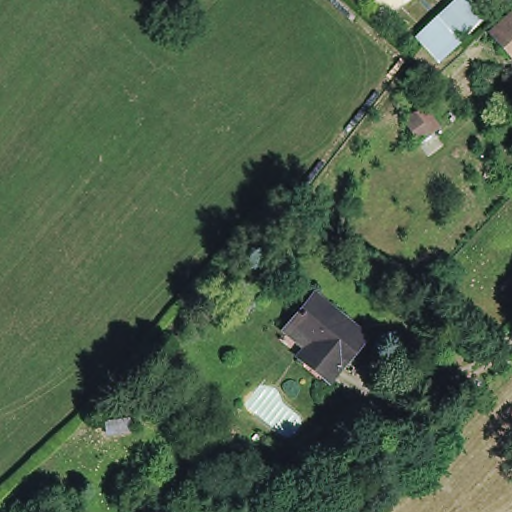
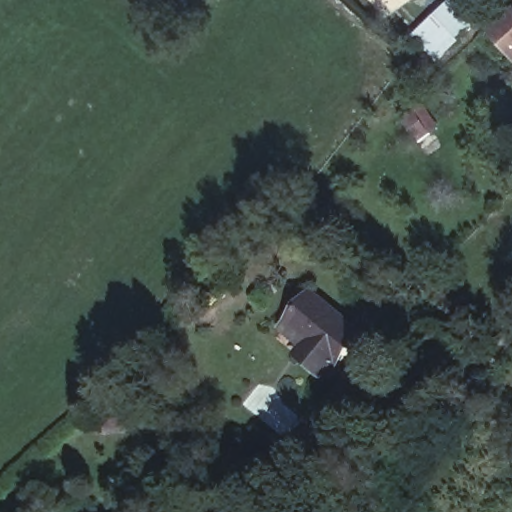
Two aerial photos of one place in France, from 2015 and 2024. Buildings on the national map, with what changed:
unchanged [(462,0),(484,0),(492,9),(463,34),(460,29),(438,48),(425,33),(446,14),(462,0)]
unchanged [(499,36),(512,24),(512,52),(499,36)]
unchanged [(422,142),(403,127),(412,116),(431,130),(422,142)]
unchanged [(300,314),(323,286),(374,328),(340,369),(310,345),(289,328),(300,314)]

